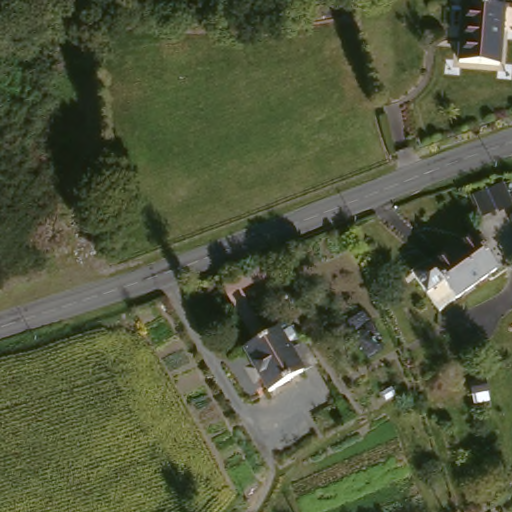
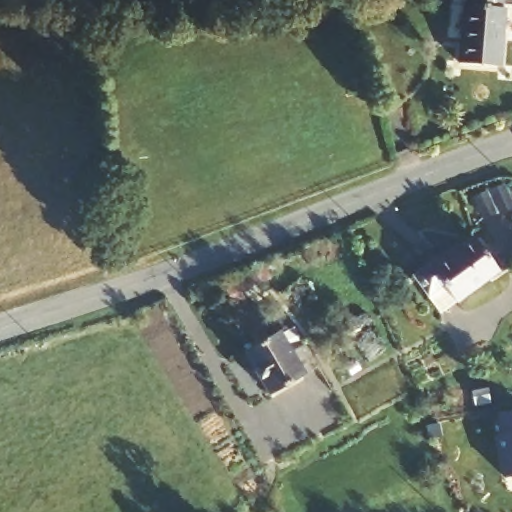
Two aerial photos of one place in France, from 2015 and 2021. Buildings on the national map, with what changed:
unchanged [(471,64),(467,5),(473,4),(472,0),(505,0),(506,3),(510,3),(511,61),(471,64)]
unchanged [(487,232),(509,267),(447,306),(424,269),(487,232)]
unchanged [(296,355),(307,349),(318,368),(272,393),(247,348),(282,329),(296,355)]
new [(512,409),(512,477),(503,479),(495,431),(498,431),(495,412),(512,409)]

